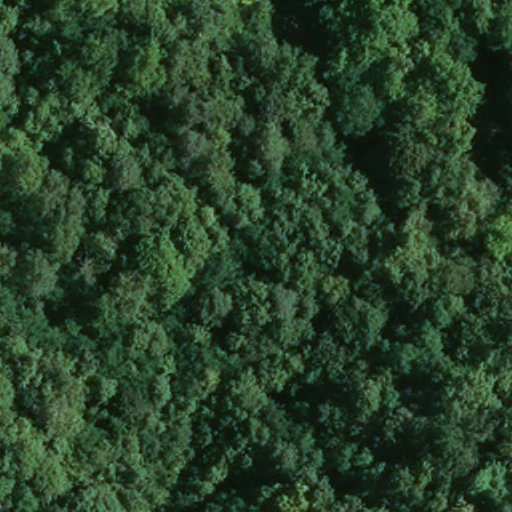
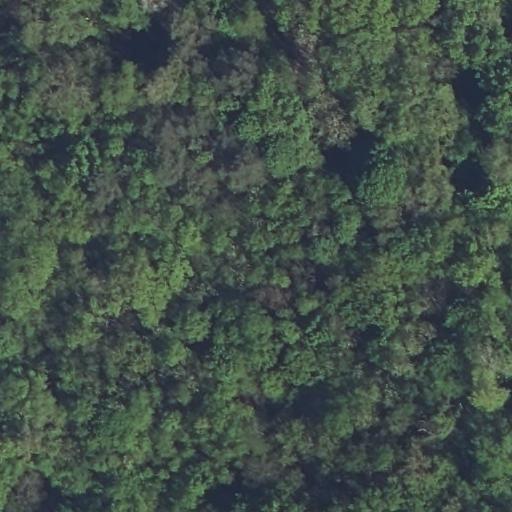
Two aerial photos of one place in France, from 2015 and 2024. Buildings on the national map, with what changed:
[]

